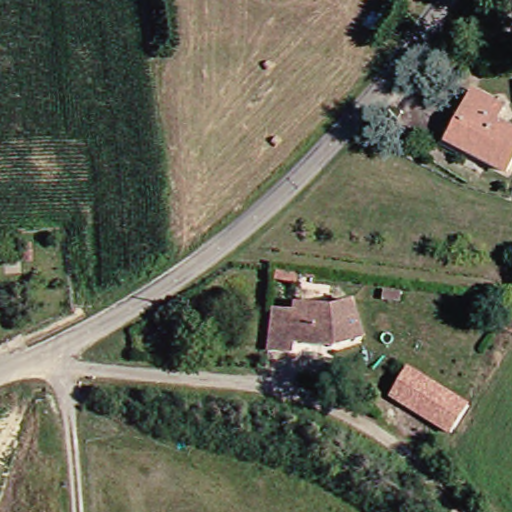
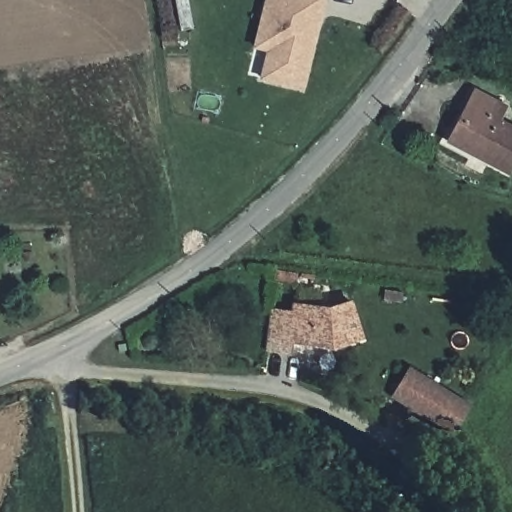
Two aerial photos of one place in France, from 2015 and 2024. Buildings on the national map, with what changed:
new [(319,24),(314,23),(313,30),(317,37),(304,94),(264,86),(277,26),(263,23),(268,0),(317,0),(324,2),(319,24)]
new [(256,55),(263,23),(277,26),(270,58),(256,55)]
unchanged [(495,129),(512,141),(512,163),(500,180),(444,142),(478,91),(508,110),(495,129)]
unchanged [(359,338),(321,348),(290,341),(289,353),(269,348),(275,306),(294,309),(296,302),(326,311),(353,304),(359,338)]
unchanged [(392,407),(409,378),(470,414),(454,444),(392,407)]

